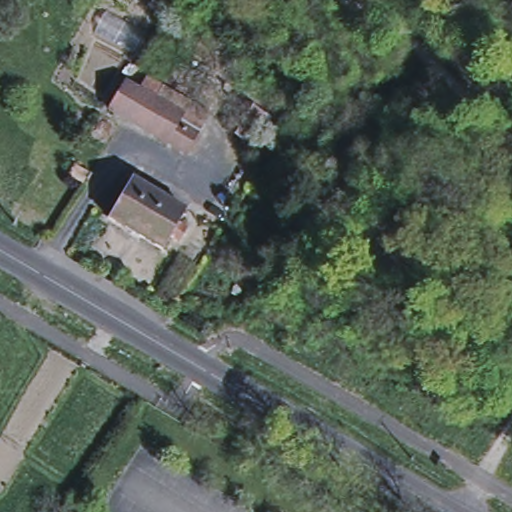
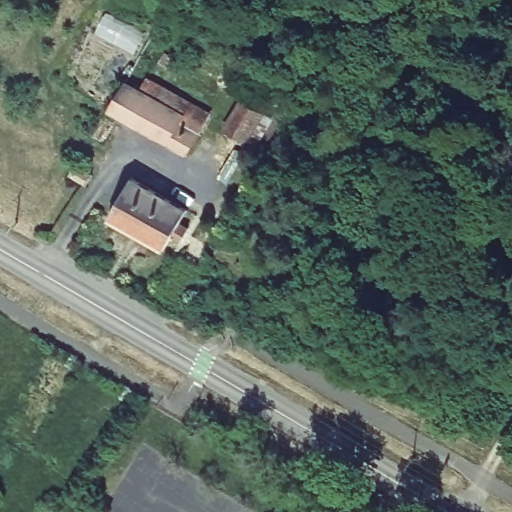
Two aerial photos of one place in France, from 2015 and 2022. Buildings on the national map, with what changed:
unchanged [(127,79),(140,87),(149,77),(213,113),(190,159),(110,111),(127,79)]
unchanged [(258,106),(270,112),(252,150),(222,134),(242,99),(258,106)]
unchanged [(92,177),(87,187),(67,177),(73,167),(92,177)]
unchanged [(185,212),(177,226),(187,232),(179,245),(170,240),(163,252),(108,220),(130,182),(185,212)]

